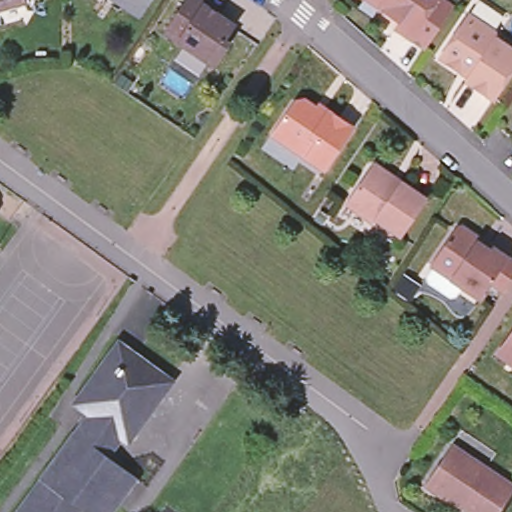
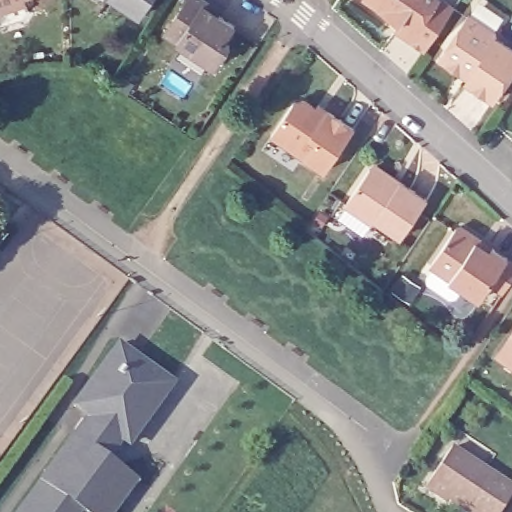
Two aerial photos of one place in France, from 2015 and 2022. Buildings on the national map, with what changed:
unchanged [(10,0),(0,3),(0,0),(10,0)]
unchanged [(120,0),(147,0),(138,13),(120,0)]
unchanged [(203,0),(202,1),(233,21),(225,33),(231,36),(214,61),(162,26),(180,0),(203,0)]
unchanged [(418,45),(387,25),(392,19),(371,5),(364,0),(443,0),(446,3),(418,45)]
unchanged [(467,9),(493,26),(495,33),(512,44),(512,62),(491,94),(463,75),(465,73),(457,67),(437,53),(467,9)]
unchanged [(318,165),(295,150),(265,131),(285,99),(298,96),(308,102),(310,99),(319,105),(346,123),(318,165)]
unchanged [(402,230),(375,212),(371,218),(345,199),(369,164),(374,156),(399,173),(427,192),(402,230)]
unchanged [(485,243),(512,260),(512,262),(496,285),(484,277),(472,294),(422,260),(450,219),(471,233),(471,237),(482,244),(485,243)]
unchanged [(502,337),(512,323),(512,366),(492,353),(502,337)]
unchanged [(28,487),(37,474),(35,473),(69,427),(71,429),(85,409),(72,399),(116,338),(168,376),(124,436),(117,431),(102,451),(134,474),(132,476),(130,474),(102,512),(90,512),(76,502),(69,512),(62,512),(28,487)]
unchanged [(511,484),(492,512),(467,512),(470,508),(423,477),(448,439),(511,484)]
unchanged [(28,487),(62,512),(10,512),(28,487)]

